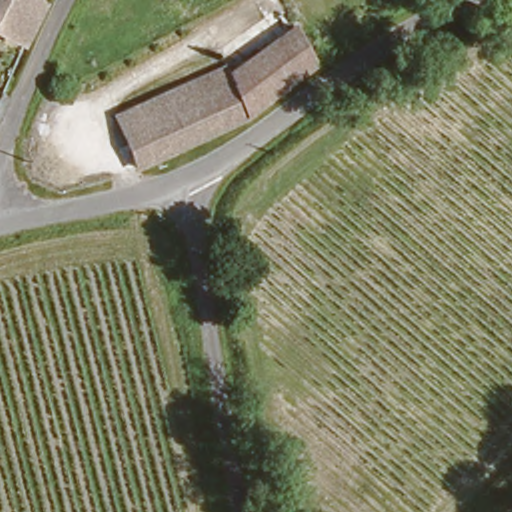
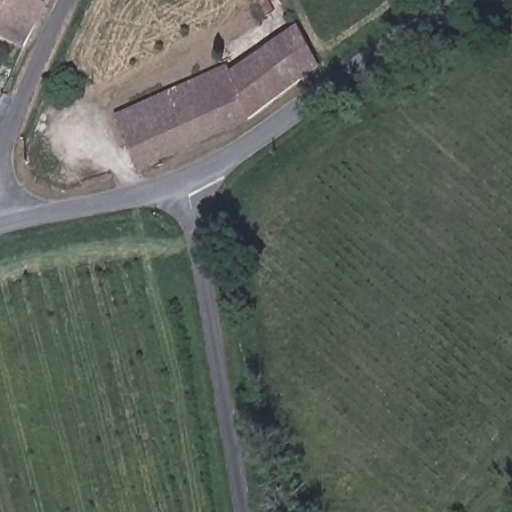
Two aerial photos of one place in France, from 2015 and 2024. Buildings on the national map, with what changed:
unchanged [(0,32),(0,0),(33,0),(11,37),(0,32)]
unchanged [(191,147),(154,164),(140,169),(119,117),(128,114),(242,62),(240,57),(237,50),(265,36),(271,47),(284,40),(303,31),(320,70),(301,82),(228,130),(191,147)]

